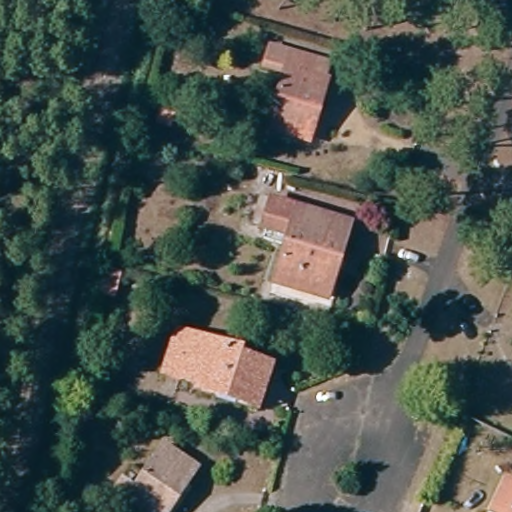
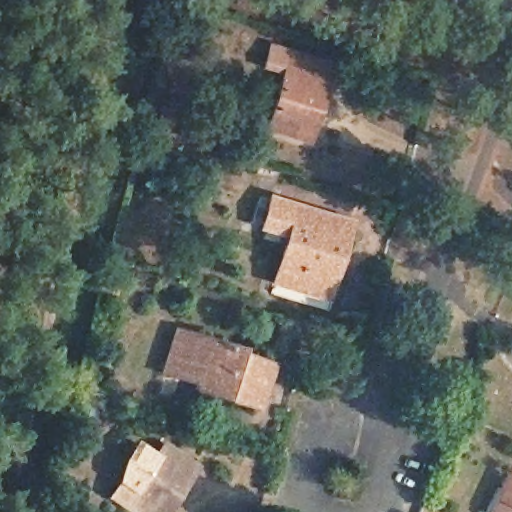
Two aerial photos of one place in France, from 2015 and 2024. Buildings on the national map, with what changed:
unchanged [(281,73),(256,66),(262,45),(333,62),(321,108),(275,96),(281,73)]
unchanged [(321,108),(312,145),(266,133),(275,96),(321,108)]
unchanged [(318,291),(275,275),(287,239),(258,228),(270,196),(353,226),(340,261),(326,295),(318,291)]
unchanged [(197,390),(199,383),(182,375),(195,335),(237,349),(235,355),(267,367),(253,409),(197,390)]
unchanged [(121,488),(133,494),(163,449),(197,472),(186,489),(170,512),(129,512),(112,501),(121,488)]
unchanged [(512,485),(512,512),(491,512),(505,482),(512,485)]

